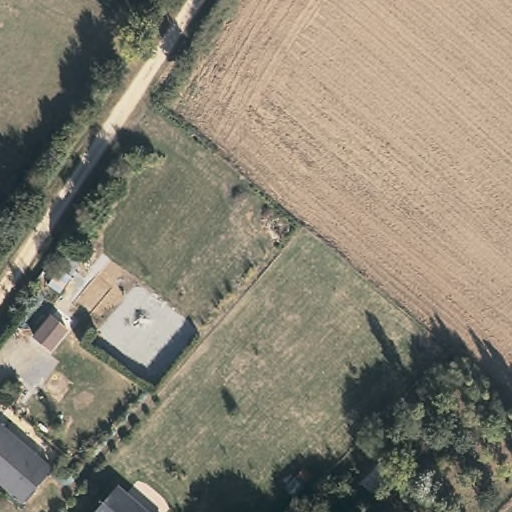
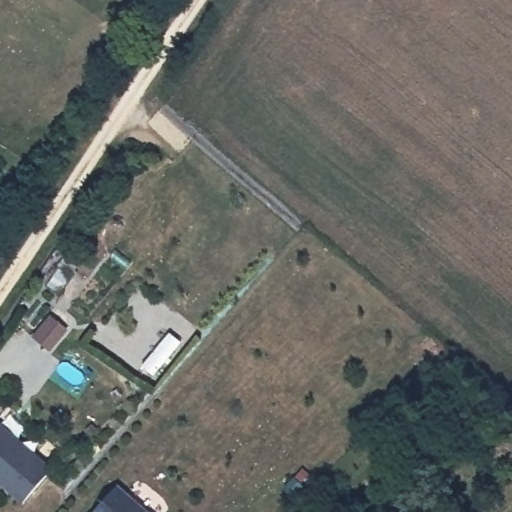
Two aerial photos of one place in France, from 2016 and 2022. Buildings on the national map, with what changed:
unchanged [(54,469),(25,502),(0,480),(0,422),(54,469)]
unchanged [(97,512),(120,485),(150,512),(97,512)]

